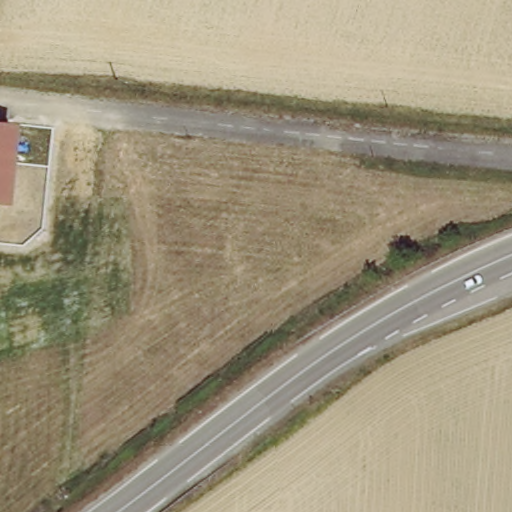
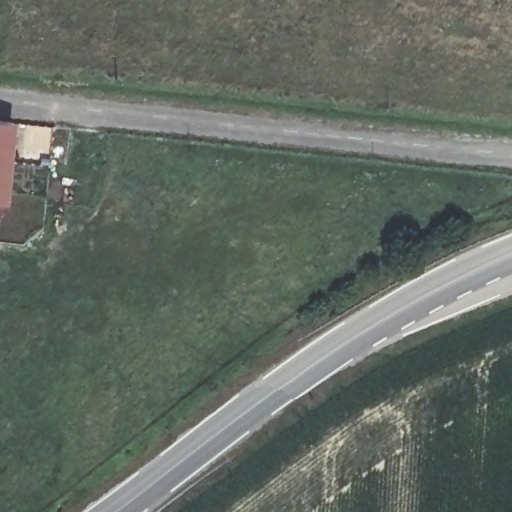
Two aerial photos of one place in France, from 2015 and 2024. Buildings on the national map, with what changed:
unchanged [(0,198),(0,119),(10,120),(2,198),(0,198)]

